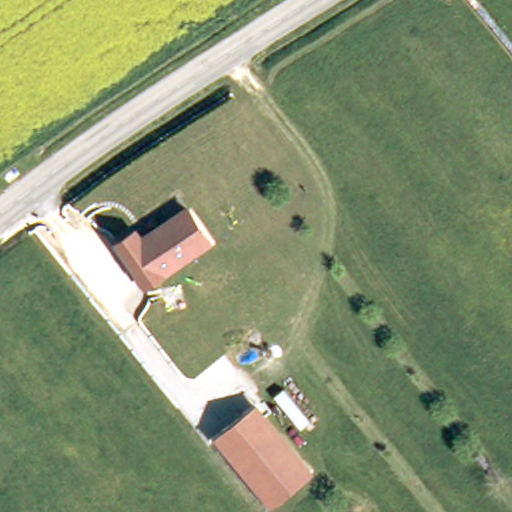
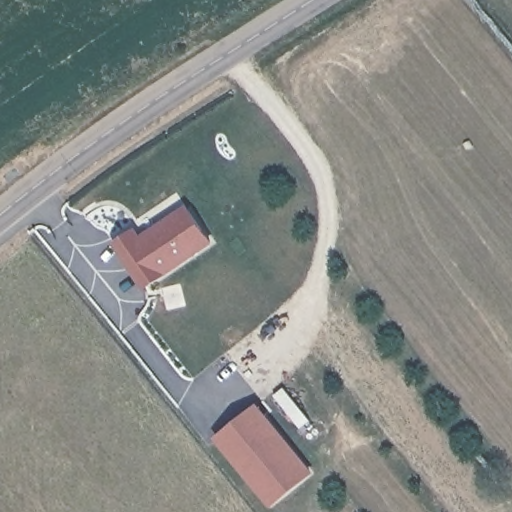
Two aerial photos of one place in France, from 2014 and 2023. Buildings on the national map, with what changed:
unchanged [(136,234),(141,242),(187,212),(211,246),(145,290),(116,246),(136,234)]
unchanged [(317,470),(271,508),(212,435),(255,401),(317,470)]

